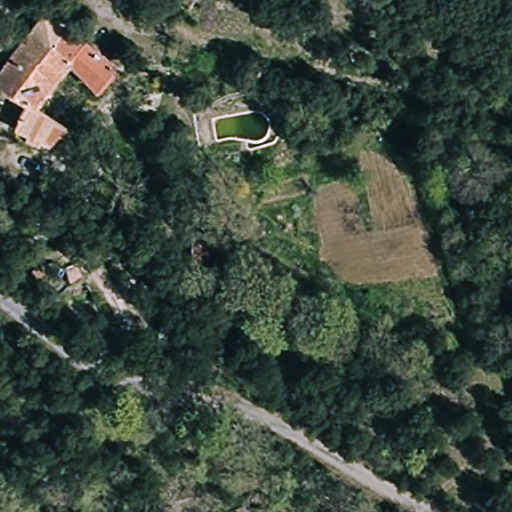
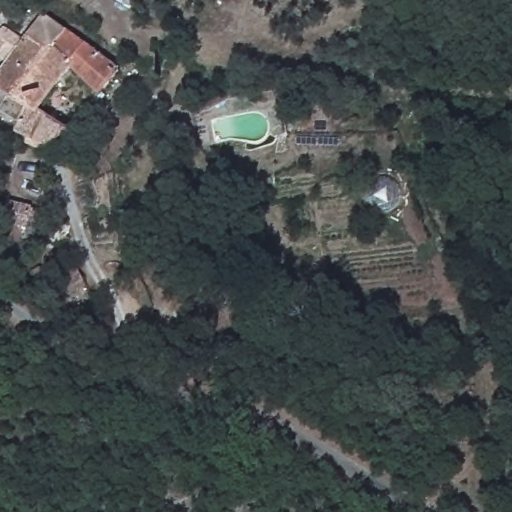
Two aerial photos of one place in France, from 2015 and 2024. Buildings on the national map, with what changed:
unchanged [(3,72),(0,70),(0,33),(16,10),(38,27),(13,57),(3,72)]
unchanged [(94,46),(124,70),(58,141),(20,115),(30,101),(18,92),(8,107),(0,101),(0,70),(3,72),(13,57),(38,27),(49,13),(94,46)]

